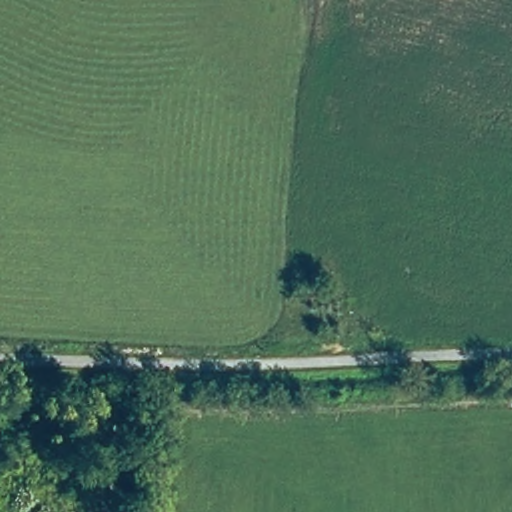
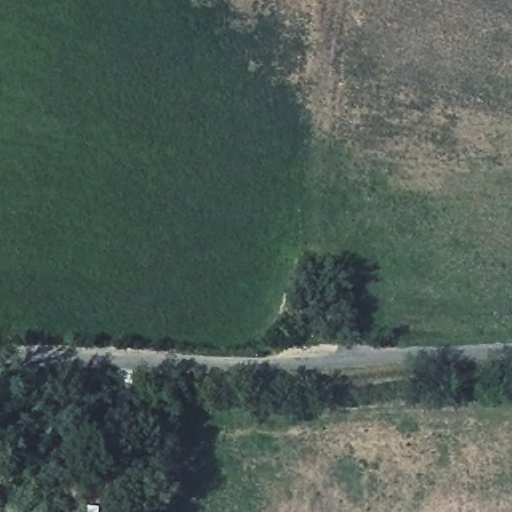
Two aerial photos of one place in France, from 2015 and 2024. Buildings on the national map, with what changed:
[]

